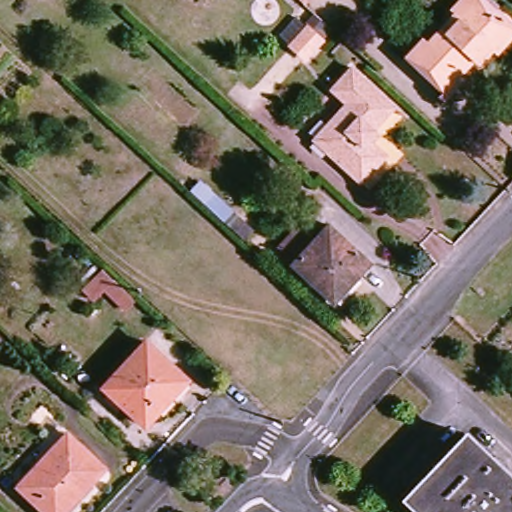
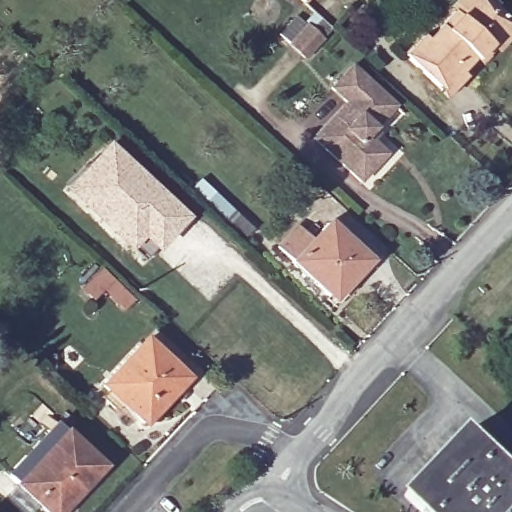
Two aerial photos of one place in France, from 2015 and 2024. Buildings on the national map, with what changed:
unchanged [(302,0),(307,0),(305,2),(302,0)]
unchanged [(478,62),(472,59),(441,92),(405,56),(423,37),(429,43),(456,15),(460,19),(474,4),(488,18),(494,12),(511,26),(478,62)]
unchanged [(308,57),(292,45),(309,27),(324,41),(308,57)]
unchanged [(324,129),(349,104),(332,87),(351,68),(393,107),(365,138),(386,157),(359,185),(326,153),(313,141),(324,129)]
new [(61,190),(105,142),(188,219),(154,254),(151,249),(139,260),(128,252),(61,190)]
unchanged [(332,303),(290,265),(292,263),(278,250),(296,229),(311,243),(327,226),(369,264),(332,303)]
unchanged [(185,383),(143,428),(103,392),(144,346),(185,383)]
unchanged [(105,468),(64,512),(41,512),(8,481),(59,425),(105,468)]
unchanged [(404,495),(465,432),(512,477),(512,512),(422,512),(404,495)]
unchanged [(220,465),(209,462),(212,451),(224,453),(220,465)]

